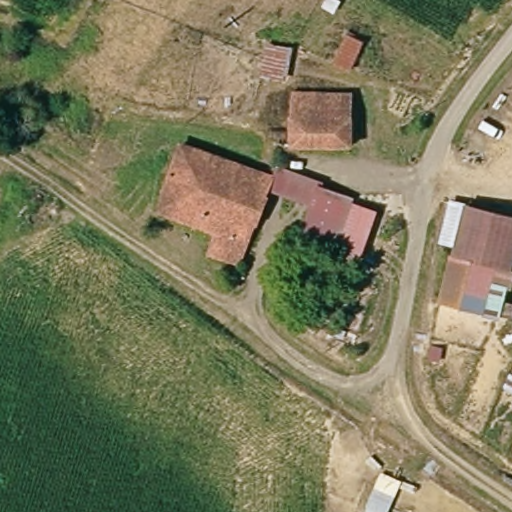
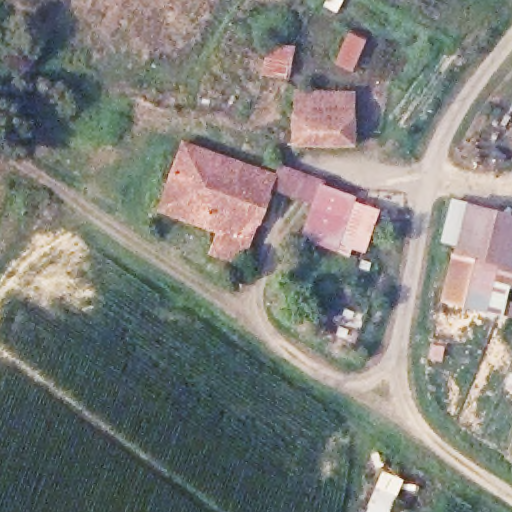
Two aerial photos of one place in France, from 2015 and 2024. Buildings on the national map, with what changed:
unchanged [(297,93),(356,94),(356,135),(356,146),(295,144),(295,137),(297,93)]
unchanged [(222,235),(167,208),(194,142),(277,177),(271,196),(241,269),(213,257),(222,235)]
unchanged [(381,214),(358,272),(301,246),(311,217),(271,196),(277,177),(282,168),(381,214)]
unchanged [(512,219),(512,280),(492,274),(453,263),(468,207),(512,219)]
unchanged [(492,274),(482,313),(443,302),(453,263),(492,274)]

